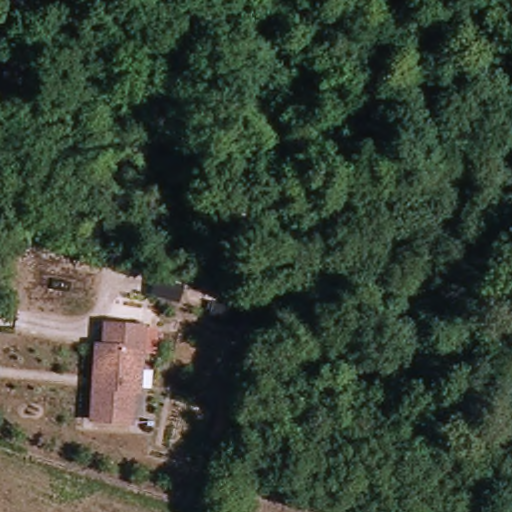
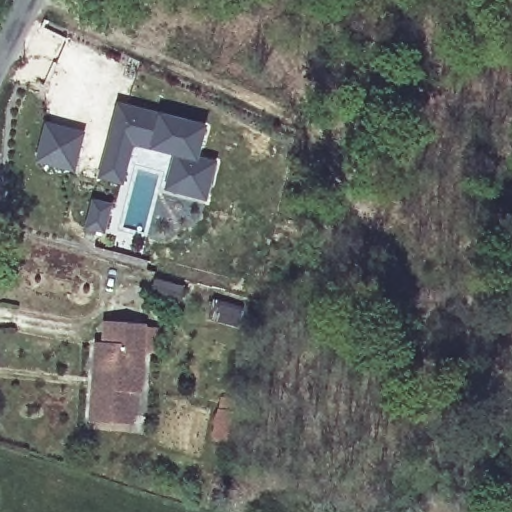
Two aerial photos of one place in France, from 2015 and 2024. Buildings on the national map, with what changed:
new [(205,201),(164,191),(172,156),(151,149),(132,144),(121,185),(98,178),(117,103),(159,114),(205,126),(196,159),(215,163),(205,201)]
new [(46,126),(80,134),(72,169),(38,161),(46,126)]
unchanged [(93,417),(95,384),(97,344),(104,344),(106,322),(143,324),(139,388),(133,387),(132,419),(93,417)]

